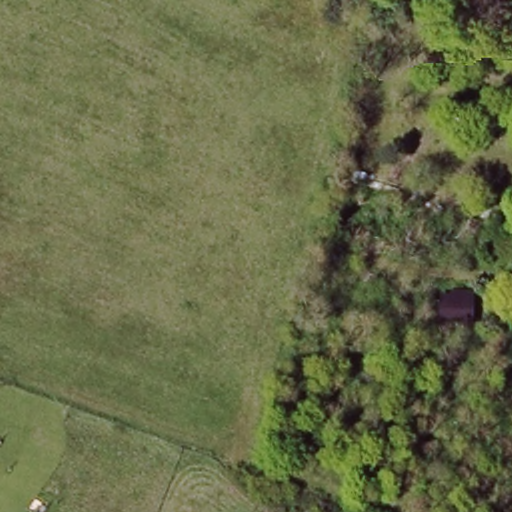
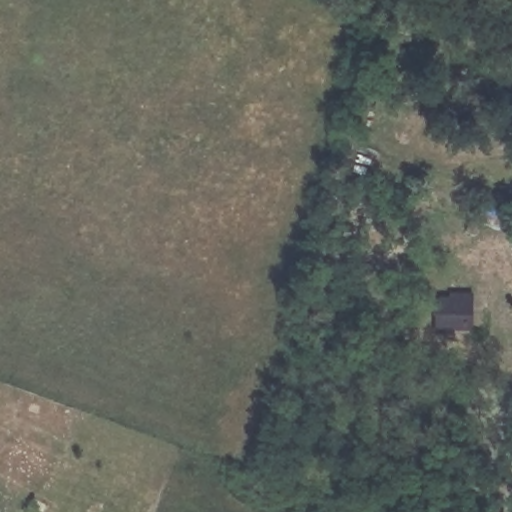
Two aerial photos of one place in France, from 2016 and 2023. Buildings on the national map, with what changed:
unchanged [(425,315),(432,315),(432,306),(442,306),(442,300),(457,300),(457,332),(442,332),(442,336),(425,336),(425,315)]

